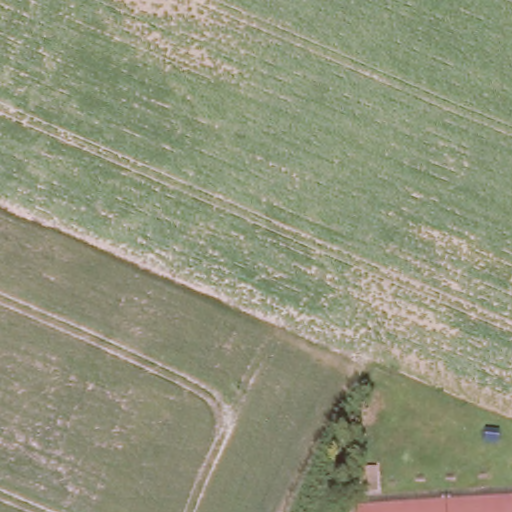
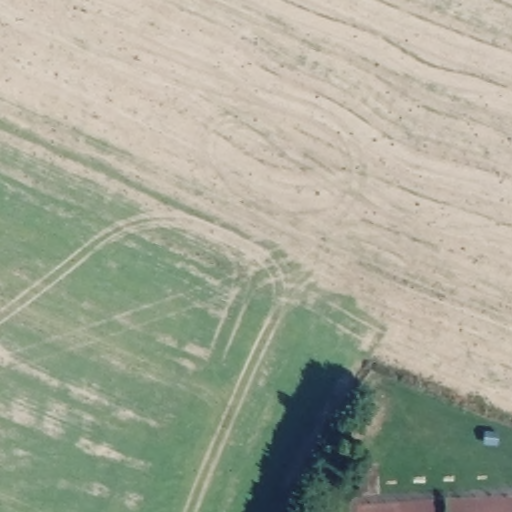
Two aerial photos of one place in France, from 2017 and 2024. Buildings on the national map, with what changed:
unchanged [(362,475),(365,475),(380,475),(380,488),(380,490),(362,490),(362,475)]

